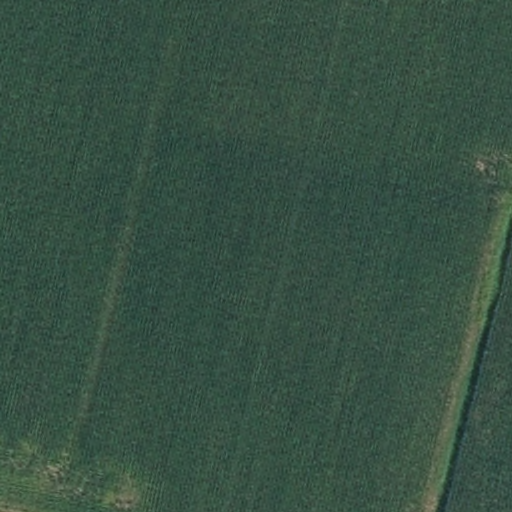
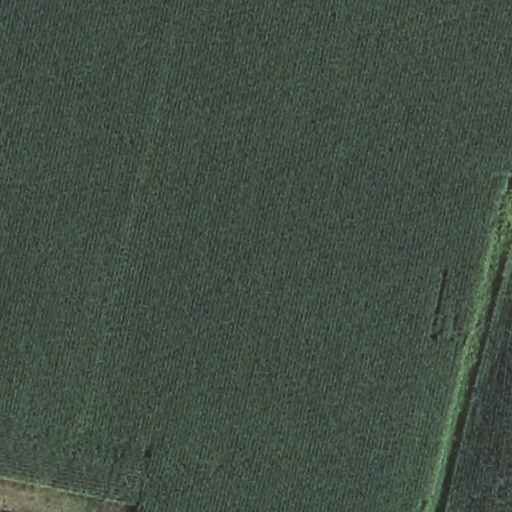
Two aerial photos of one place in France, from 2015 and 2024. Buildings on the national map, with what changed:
[]

